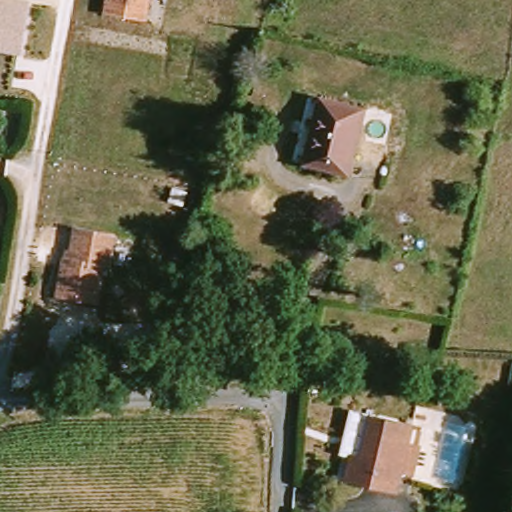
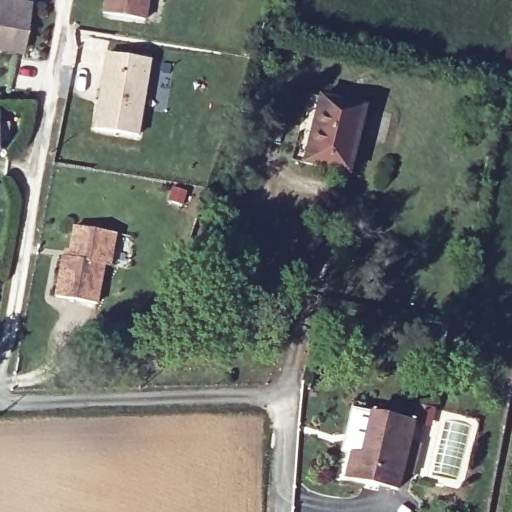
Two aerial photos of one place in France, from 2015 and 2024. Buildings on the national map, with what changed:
unchanged [(25,56),(0,53),(0,0),(20,0),(33,2),(25,56)]
unchanged [(104,13),(106,0),(148,0),(144,20),(104,13)]
new [(105,56),(148,64),(134,138),(92,131),(105,56)]
unchanged [(320,98),(365,110),(349,172),(305,163),(320,98)]
unchanged [(110,267),(104,265),(97,304),(56,297),(64,257),(69,258),(74,227),(115,235),(110,267)]
unchanged [(414,426),(409,444),(420,447),(414,474),(403,471),(399,490),(347,478),(351,455),(362,458),(371,415),(414,426)]

